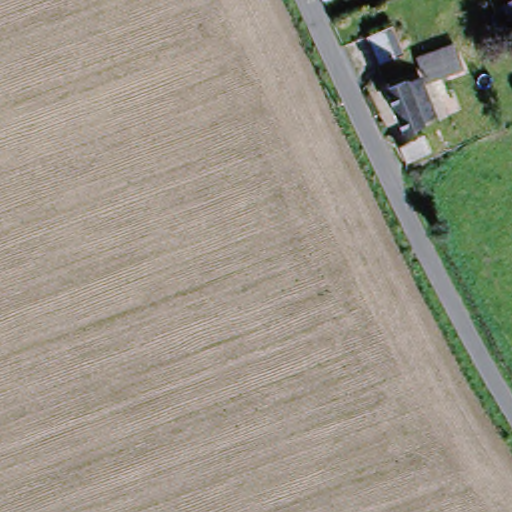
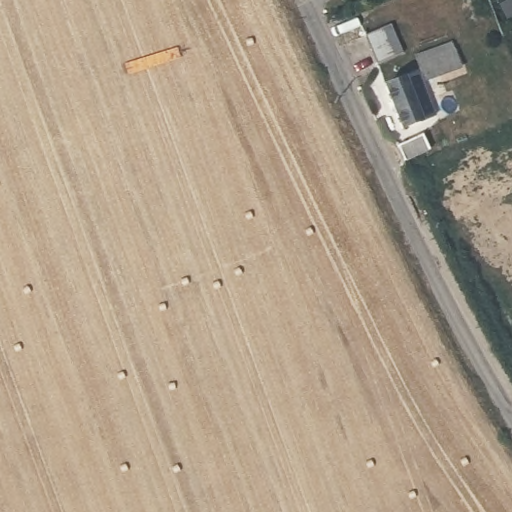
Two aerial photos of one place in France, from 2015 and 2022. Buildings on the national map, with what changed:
unchanged [(404,53),(377,64),(365,35),(391,24),(404,53)]
unchanged [(462,78),(426,91),(417,68),(453,54),(462,78)]
unchanged [(387,97),(406,90),(407,91),(420,86),(435,126),(403,139),(387,97)]
unchanged [(431,160),(406,172),(398,156),(423,144),(431,160)]

